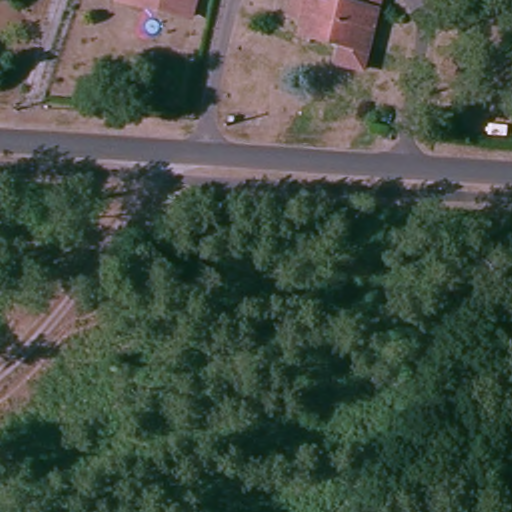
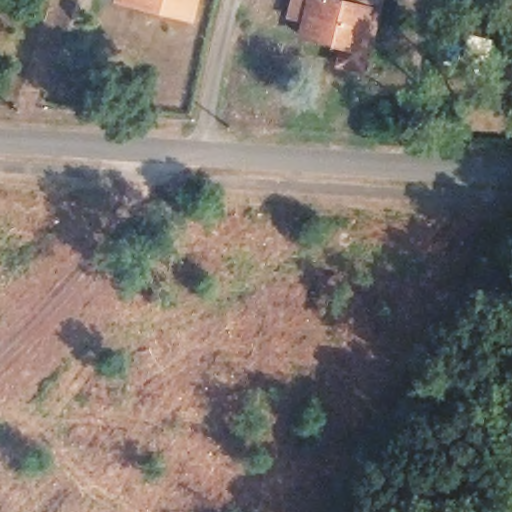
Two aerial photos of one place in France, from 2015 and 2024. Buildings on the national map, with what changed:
unchanged [(129,0),(189,0),(185,15),(129,0)]
unchanged [(357,70),(332,64),(336,44),(298,35),(299,19),(280,15),(283,0),(337,0),(372,8),(357,70)]

